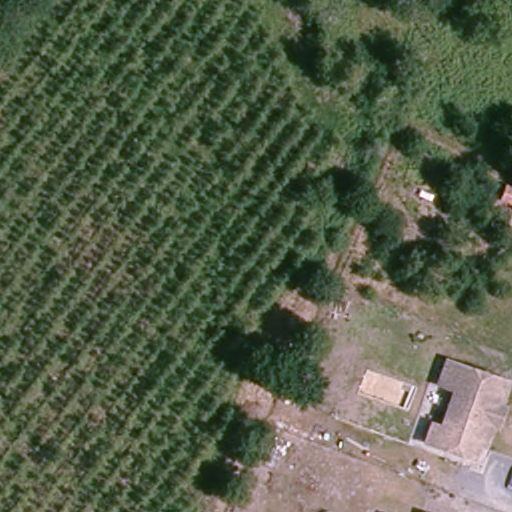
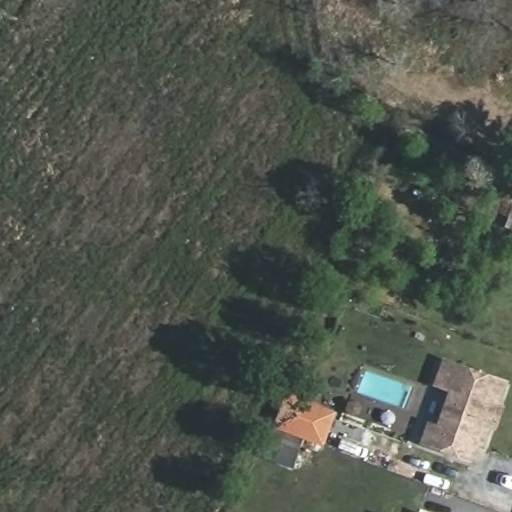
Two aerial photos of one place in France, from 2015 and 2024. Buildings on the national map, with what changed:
unchanged [(483,449),(475,447),(471,462),(430,443),(422,440),(430,423),(437,425),(449,385),(440,383),(448,362),(466,369),(506,386),(483,449)]
new [(338,412),(324,447),(283,431),(296,397),(338,412)]

